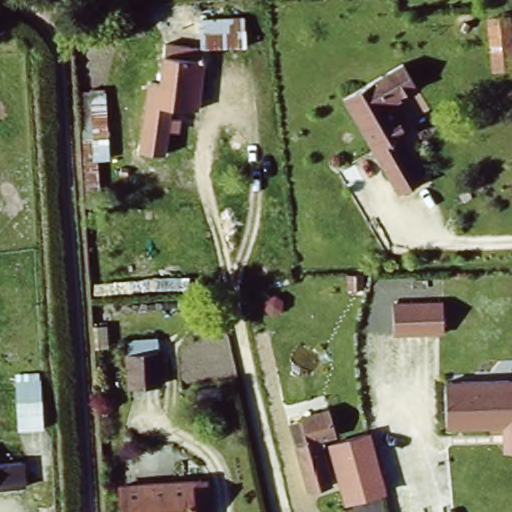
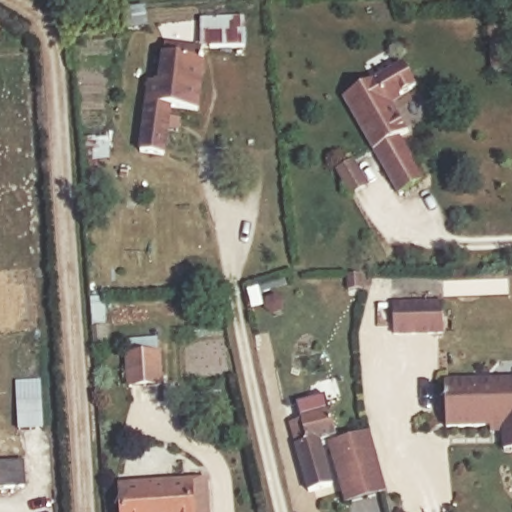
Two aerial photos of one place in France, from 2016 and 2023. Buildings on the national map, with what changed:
unchanged [(483,77),(479,24),(504,21),(509,77),(483,77)]
unchanged [(238,53),(198,52),(193,115),(164,112),(158,162),(128,157),(136,86),(152,85),(155,51),(191,52),(191,26),(237,22),(238,53)]
unchanged [(342,97),(402,63),(416,86),(399,96),(403,102),(397,105),(412,131),(435,172),(398,195),(342,97)]
unchanged [(106,90),(113,191),(85,192),(78,92),(106,90)]
unchanged [(385,343),(384,312),(432,310),(434,341),(385,343)]
unchanged [(163,347),(171,402),(132,405),(128,350),(163,347)]
unchanged [(496,435),(437,436),(435,388),(512,385),(512,453),(497,455),(496,435)]
unchanged [(41,386),(44,429),(21,431),(15,387),(41,386)]
unchanged [(328,410),(336,437),(322,442),(335,485),(305,492),(284,421),(328,410)]
unchanged [(382,490),(350,506),(332,446),(372,432),(382,490)]
unchanged [(29,467),(32,505),(0,506),(0,467),(29,467)]
unchanged [(211,481),(212,512),(119,512),(114,485),(211,481)]

